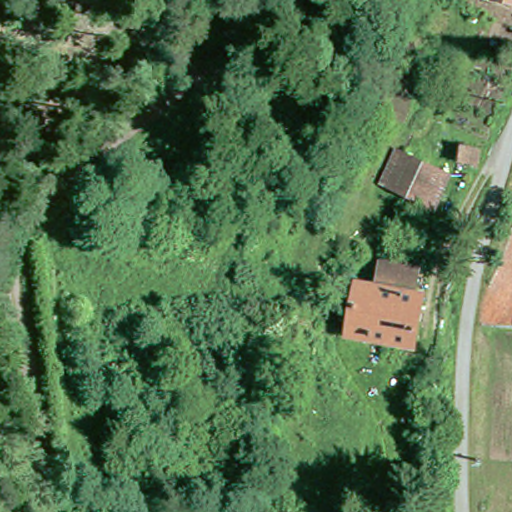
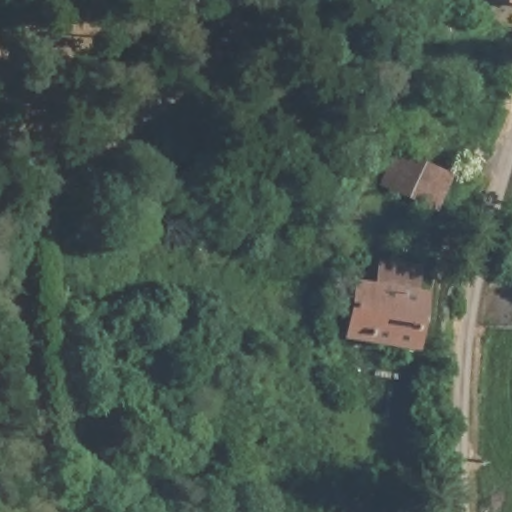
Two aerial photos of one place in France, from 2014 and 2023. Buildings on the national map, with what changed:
unchanged [(387,182),(408,148),(450,174),(430,209),(387,182)]
unchanged [(355,275),(375,281),(380,260),(421,270),(416,290),(422,292),(410,341),(342,323),(355,275)]

